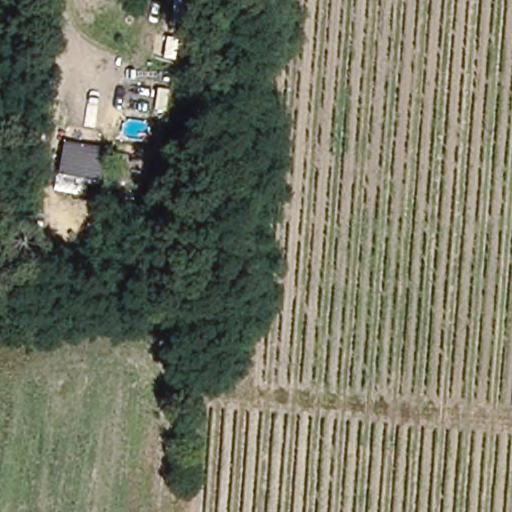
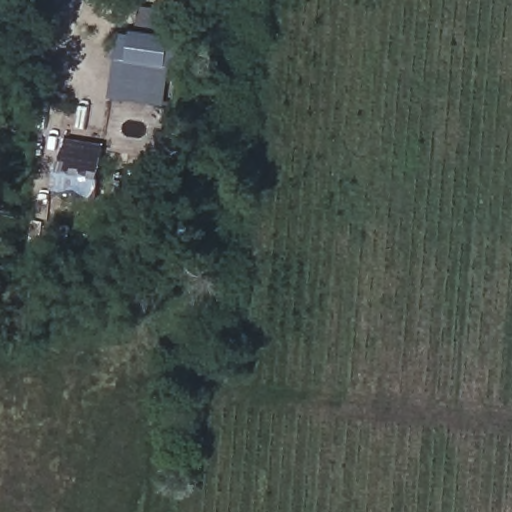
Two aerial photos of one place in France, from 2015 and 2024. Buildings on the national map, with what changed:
new [(176,42),(166,108),(112,100),(122,35),(176,42)]
unchanged [(99,181),(84,178),(79,194),(54,191),(57,172),(59,172),(64,140),(105,146),(99,181)]

